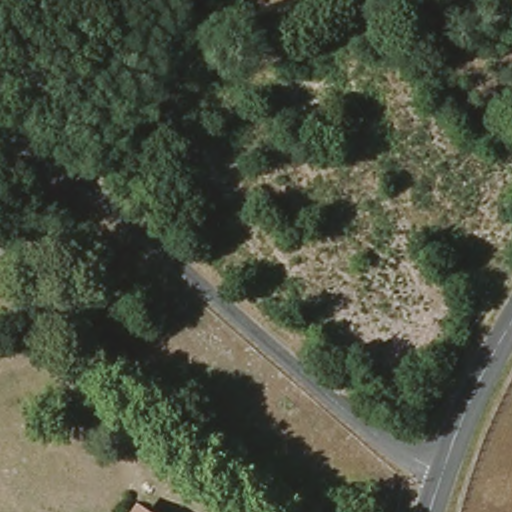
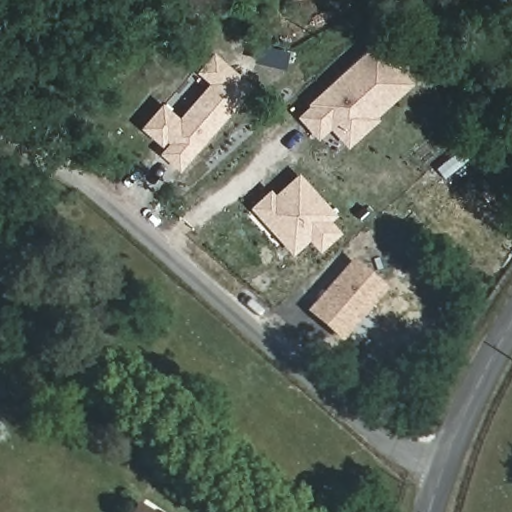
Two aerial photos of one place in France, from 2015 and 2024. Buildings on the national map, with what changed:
unchanged [(192,7),(186,0),(199,0),(192,7)]
new [(377,116),(381,119),(348,147),(330,129),(318,140),(297,116),(309,105),(307,104),(375,44),(413,83),(377,116)]
new [(180,171),(159,153),(163,147),(140,127),(162,103),(180,117),(208,83),(195,72),(213,51),(252,86),(180,171)]
new [(332,220),(343,232),(321,252),(310,241),(293,255),(250,207),(271,189),(275,192),(300,172),(337,215),(332,220)]
new [(388,288),(344,342),(307,311),(353,257),(388,288)]

